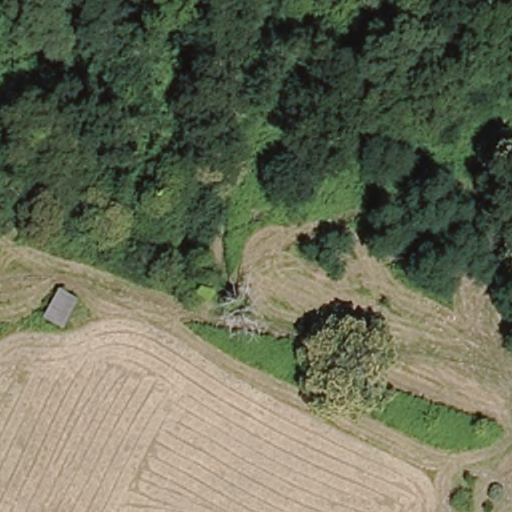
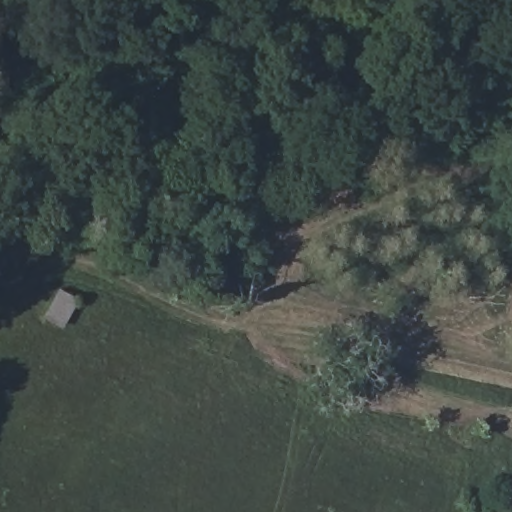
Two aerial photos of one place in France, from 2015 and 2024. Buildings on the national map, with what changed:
unchanged [(78,298),(61,328),(42,317),(60,287),(78,298)]

